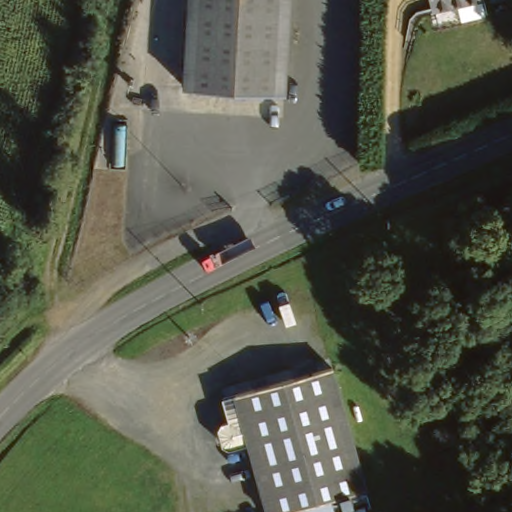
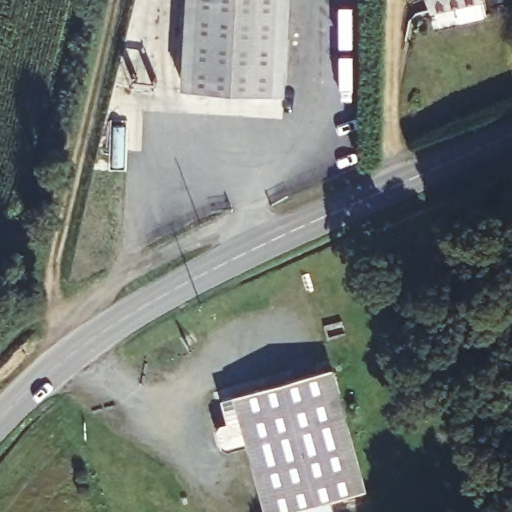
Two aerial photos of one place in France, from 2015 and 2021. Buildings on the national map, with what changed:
unchanged [(195,0),(293,0),(283,88),(187,78),(195,0)]
unchanged [(464,0),(479,0),(465,4),(464,0)]
unchanged [(335,368),(336,368),(345,405),(368,491),(333,500),(337,511),(333,512),(307,512),(305,507),(289,512),(270,512),(251,442),(231,448),(226,445),(222,428),(225,423),(232,421),(226,397),(239,394),(335,368)]

